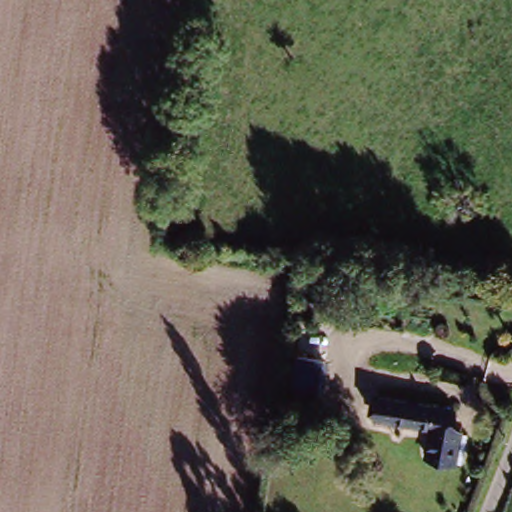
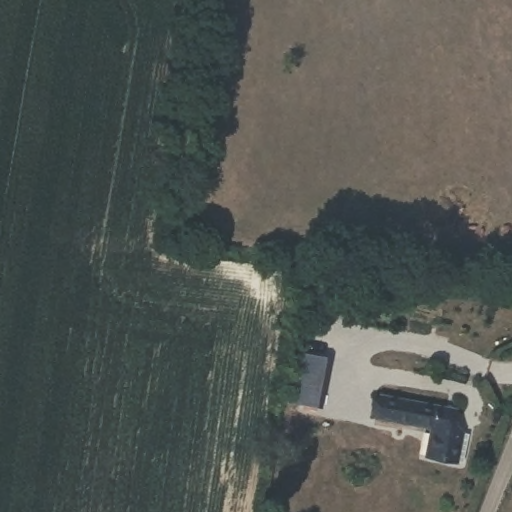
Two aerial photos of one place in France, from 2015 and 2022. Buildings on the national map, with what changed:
unchanged [(330,308),(312,305),(315,288),(332,290),(330,308)]
unchanged [(324,370),(319,397),(290,392),(295,364),(324,370)]
unchanged [(456,473),(427,471),(429,442),(382,439),(382,413),(452,417),(450,442),(457,442),(456,473)]

